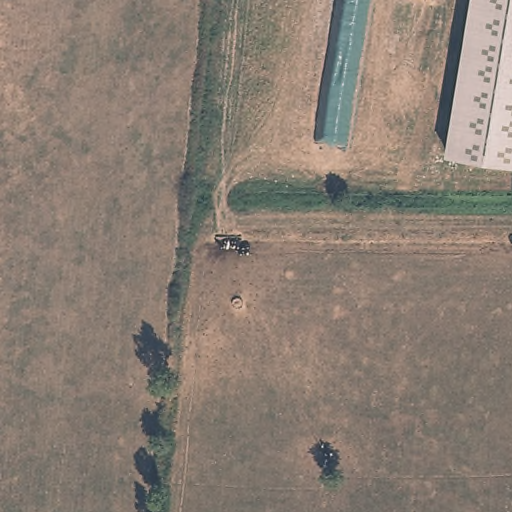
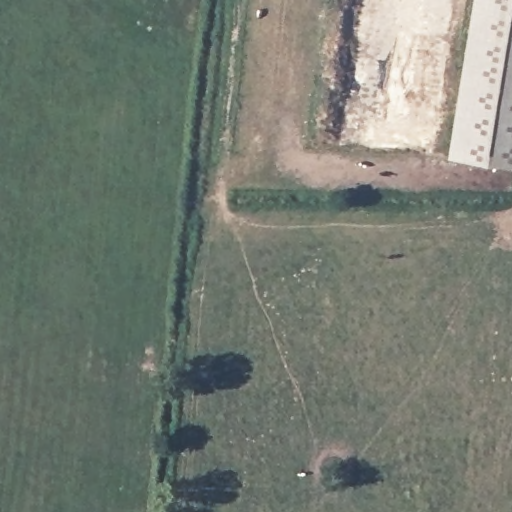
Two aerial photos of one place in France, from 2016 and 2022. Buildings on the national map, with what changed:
unchanged [(512,166),(448,155),(474,0),(512,0),(512,166)]

